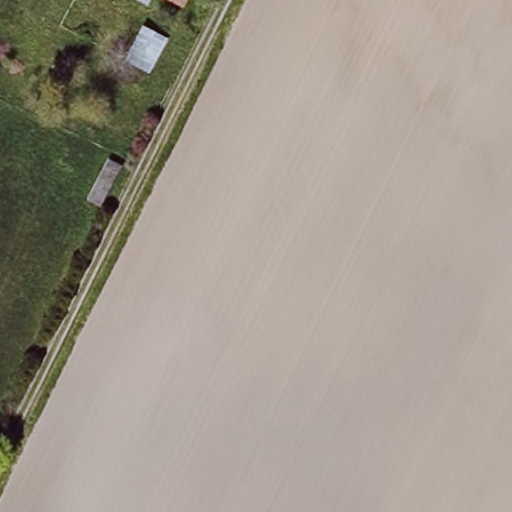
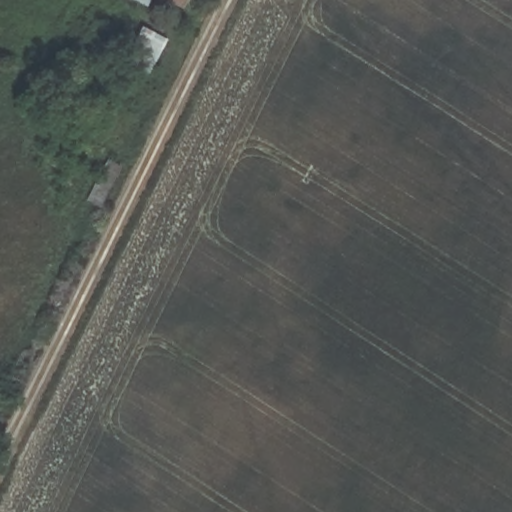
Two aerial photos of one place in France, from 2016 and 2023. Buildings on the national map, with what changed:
unchanged [(180,0),(178,4),(170,0),(180,0)]

